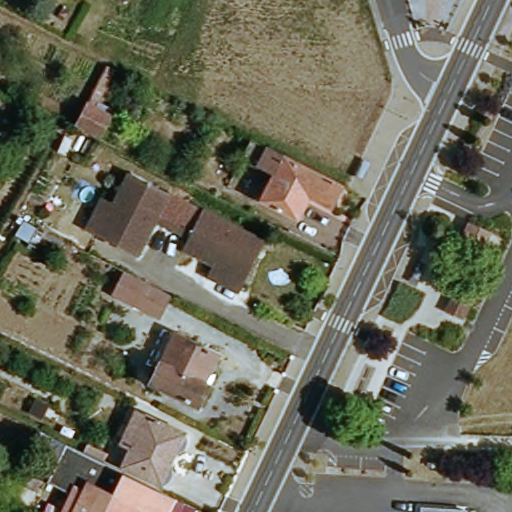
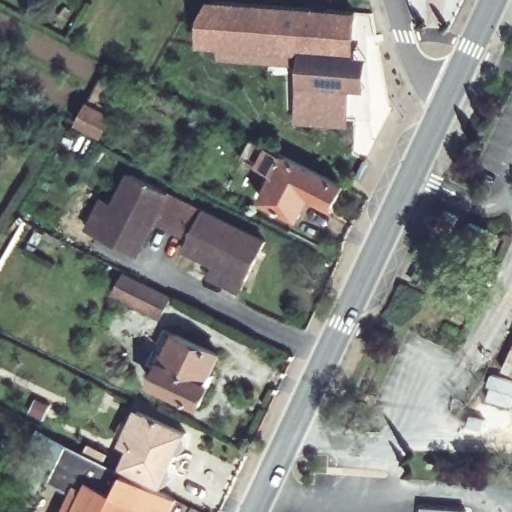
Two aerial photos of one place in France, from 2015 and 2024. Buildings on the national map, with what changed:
new [(361,89),(346,88),(344,121),(296,118),(298,84),(300,56),(196,49),(198,21),(207,4),(351,14),(348,58),(364,59),(361,89)]
unchanged [(106,65),(113,68),(94,108),(111,116),(101,134),(78,123),(106,65)]
unchanged [(253,139),(344,185),(332,208),(310,197),(298,219),(263,202),(276,176),(242,159),(253,139)]
unchanged [(204,275),(210,264),(178,249),(183,239),(150,223),(133,255),(93,236),(81,230),(98,198),(110,204),(125,174),(260,241),(240,280),(235,291),(204,275)]
unchanged [(471,223),(493,233),(482,254),(461,244),(471,223)]
unchanged [(160,315),(114,294),(124,274),(125,273),(170,295),(170,296),(160,315)]
unchanged [(470,304),(463,319),(448,311),(455,297),(470,304)]
unchanged [(454,337),(448,347),(440,342),(445,332),(454,337)]
unchanged [(209,384),(199,404),(151,382),(174,333),(220,355),(207,383),(209,384)]
unchanged [(162,485),(125,468),(135,444),(125,439),(139,410),(186,432),(162,485)]
unchanged [(122,472),(121,474),(175,499),(168,512),(145,512),(138,509),(90,485),(83,498),(73,492),(50,480),(67,444),(122,472)]
unchanged [(90,445),(109,454),(106,461),(87,452),(90,445)]
unchanged [(136,512),(63,512),(73,492),(83,498),(90,485),(138,509),(136,512)]

